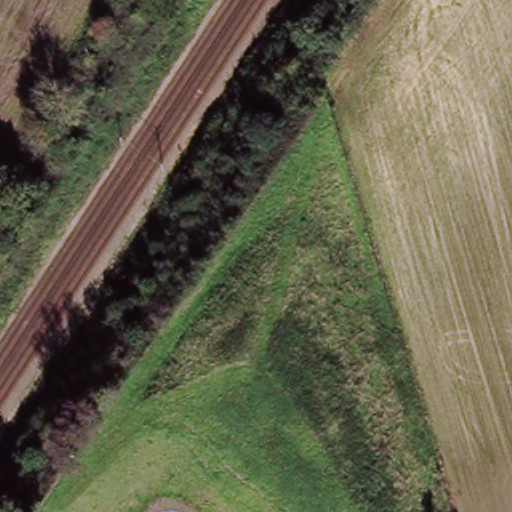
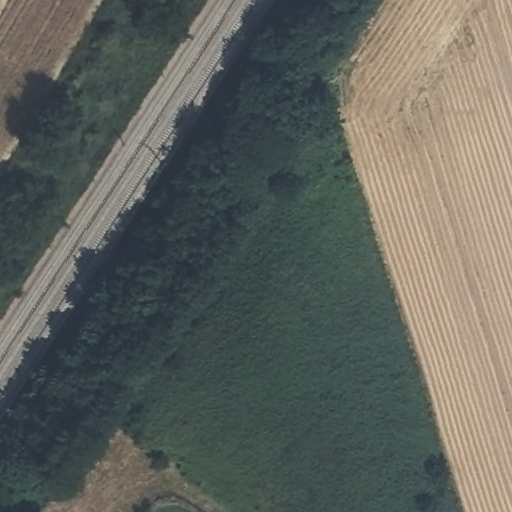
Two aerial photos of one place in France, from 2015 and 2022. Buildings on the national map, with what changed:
[]

